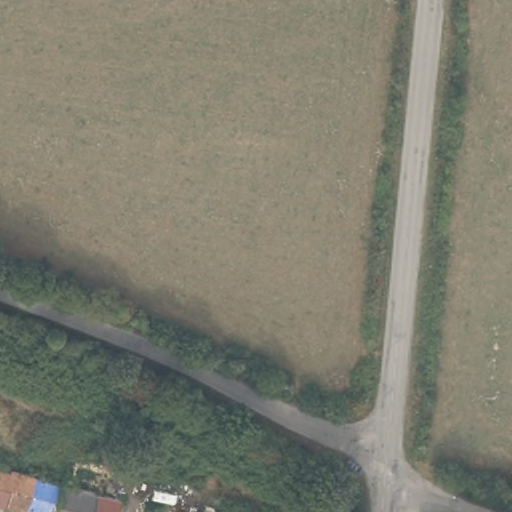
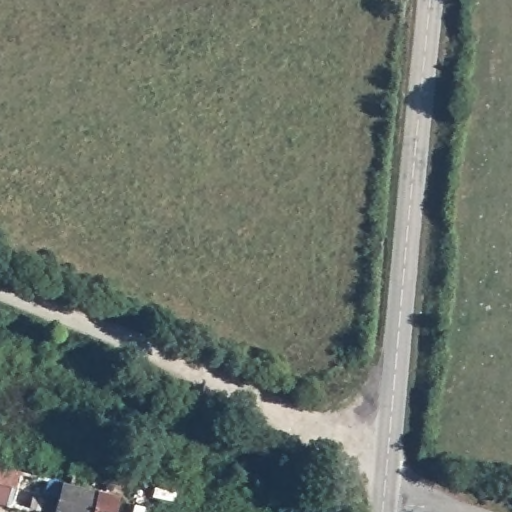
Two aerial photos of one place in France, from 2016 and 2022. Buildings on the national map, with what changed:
unchanged [(13,512),(0,509),(0,468),(66,485),(70,468),(99,474),(94,495),(117,500),(114,512),(13,512)]
unchanged [(198,502),(196,512),(147,512),(151,490),(198,502)]

